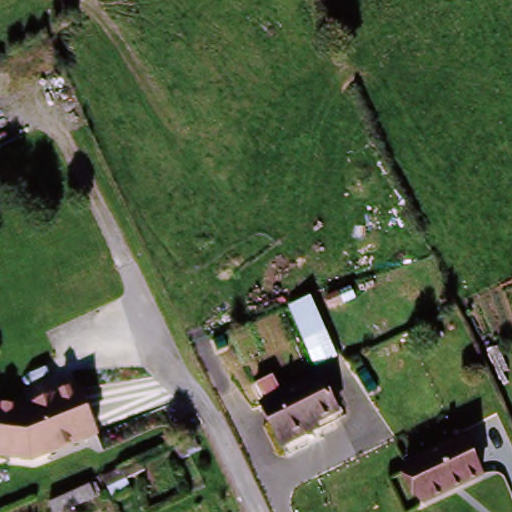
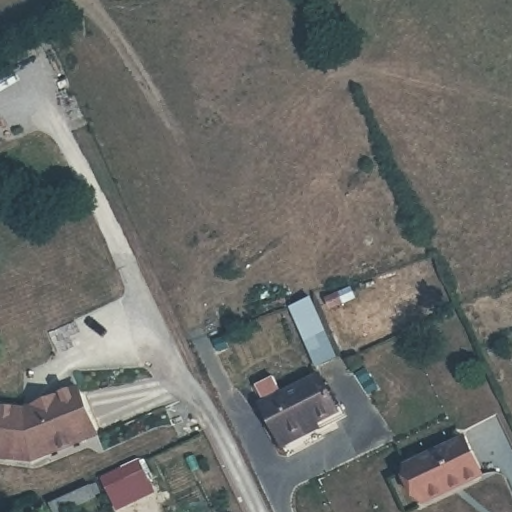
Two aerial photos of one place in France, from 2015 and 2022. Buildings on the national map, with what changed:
unchanged [(318,360),(290,308),(312,297),(333,355),(318,360)]
unchanged [(333,407),(297,423),(300,429),(278,437),(262,400),(265,399),(256,381),(275,372),(283,390),(318,374),(333,407)]
unchanged [(0,417),(26,419),(27,426),(40,418),(38,413),(80,394),(100,440),(38,468),(36,463),(22,462),(22,466),(0,465),(0,417)]
unchanged [(484,475),(466,484),(465,481),(451,487),(453,490),(427,502),(410,466),(467,439),(484,475)]
new [(140,459),(155,491),(116,511),(107,494),(98,475),(117,467),(130,461),(134,471),(131,464),(140,459)]
new [(97,492),(53,512),(50,512),(45,501),(93,480),(97,492)]

